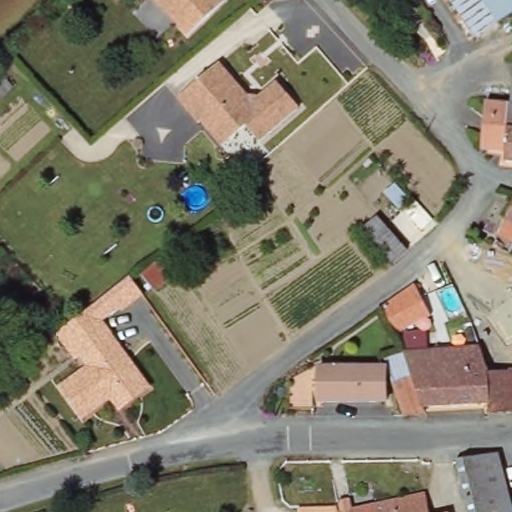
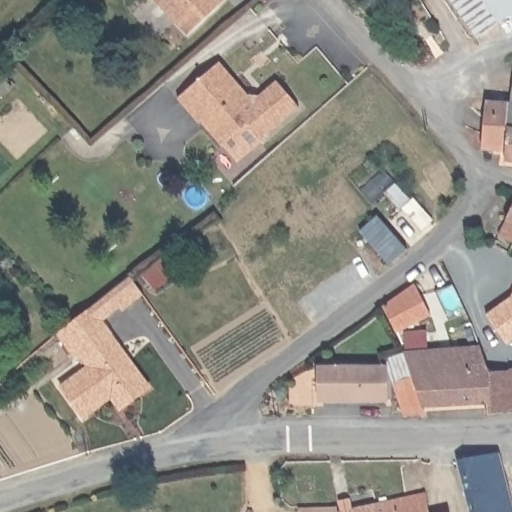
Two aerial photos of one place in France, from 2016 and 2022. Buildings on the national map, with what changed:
unchanged [(153,0),(217,0),(220,4),(186,35),(153,0)]
unchanged [(454,0),(470,0),(460,7),(454,0)]
unchanged [(512,0),(512,11),(481,35),(460,7),(470,0),(512,0)]
unchanged [(222,66),(253,103),(258,104),(279,85),(301,111),(262,145),(248,129),(224,150),(203,125),(201,126),(180,102),(222,66)]
unchanged [(508,150),(487,148),(485,146),(489,101),(512,103),(512,161),(507,161),(508,150)]
unchanged [(512,216),(512,240),(503,237),(512,216)]
unchanged [(389,267),(359,232),(377,218),(407,252),(389,267)]
unchanged [(488,245),(491,239),(500,243),(497,249),(488,245)]
unchanged [(171,275),(152,290),(140,276),(158,260),(171,275)]
unchanged [(146,297),(126,314),(122,310),(106,322),(95,306),(132,276),(146,297)]
unchanged [(415,285),(432,319),(399,336),(383,308),(415,285)]
new [(512,295),(512,341),(507,345),(486,315),(511,296),(512,295)]
unchanged [(95,306),(106,322),(114,333),(112,335),(149,388),(120,408),(113,398),(86,416),(64,387),(92,367),(90,365),(86,366),(62,333),(76,322),(95,306)]
unchanged [(424,414),(405,416),(367,317),(383,308),(399,336),(403,344),(406,357),(408,366),(424,407),(424,414)]
unchanged [(424,407),(408,366),(406,357),(453,352),(449,340),(473,331),(487,372),(485,373),(488,402),(486,403),(424,407)]
unchanged [(383,402),(319,402),(319,367),(383,367),(383,402)]
unchanged [(486,403),(488,402),(485,373),(487,372),(507,371),(507,369),(512,369),(512,410),(512,414),(487,416),(486,403)]
unchanged [(469,510),(457,462),(502,455),(511,499),(512,505),(512,512),(461,512),(469,510)]
unchanged [(424,495),(428,512),(346,512),(424,495)]

